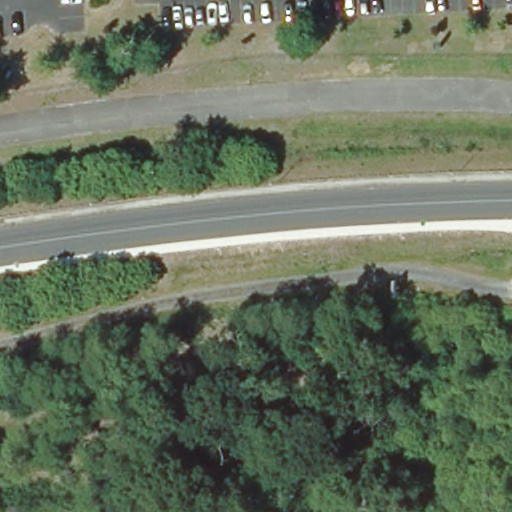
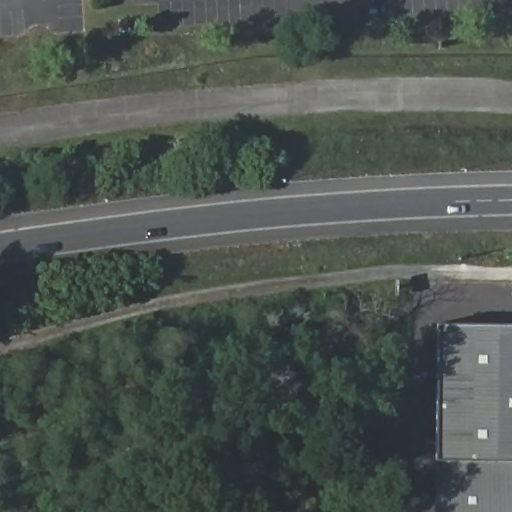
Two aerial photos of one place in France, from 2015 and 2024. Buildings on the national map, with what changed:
new [(436,460),(439,324),(512,325),(512,512),(436,512),(436,460)]

